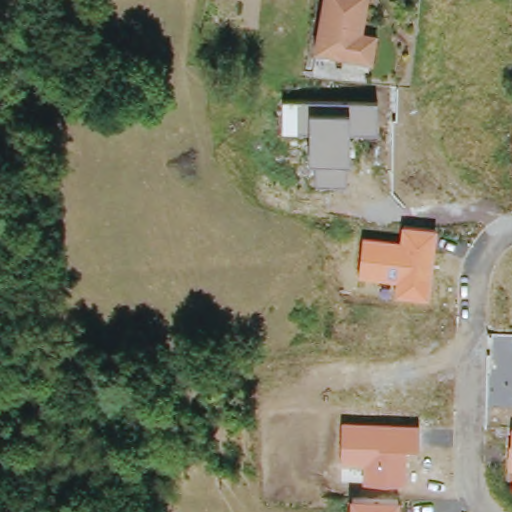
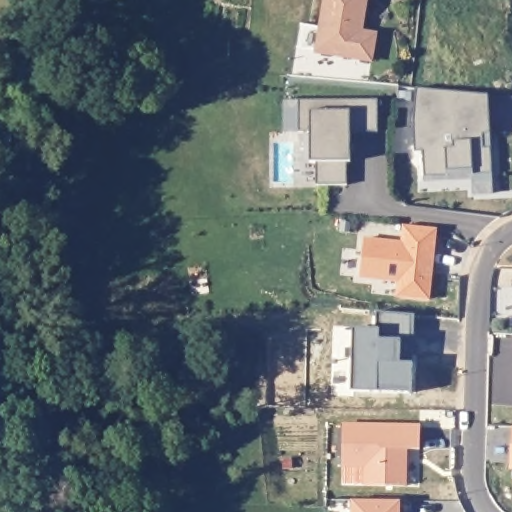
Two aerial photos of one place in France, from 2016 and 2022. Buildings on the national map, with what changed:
unchanged [(365,35),(376,37),(375,40),(372,62),(317,54),(320,31),(325,0),(367,0),(362,32),(365,35)]
new [(489,96),(491,134),(484,135),(485,148),(491,148),(493,174),(473,175),(472,170),(448,171),(448,176),(425,177),(423,152),(415,152),(414,122),(413,89),(489,96)]
unchanged [(377,102),(378,134),(349,130),(350,162),(346,162),(347,183),(316,184),(315,162),(311,162),(310,131),(283,134),(283,102),(377,102)]
unchanged [(437,230),(430,302),(396,298),(397,285),(358,281),(363,240),(400,243),(402,227),(437,230)]
new [(360,331),(380,332),(381,312),(416,316),(414,345),(405,344),(403,366),(415,367),(413,396),(355,391),(360,331)]
unchanged [(418,451),(406,451),(406,487),(362,487),(363,469),(341,467),(341,425),(419,425),(418,451)]
unchanged [(508,447),(511,447),(512,428),(512,467),(508,470),(508,447)]
unchanged [(399,512),(349,512),(350,502),(399,504),(399,512)]

